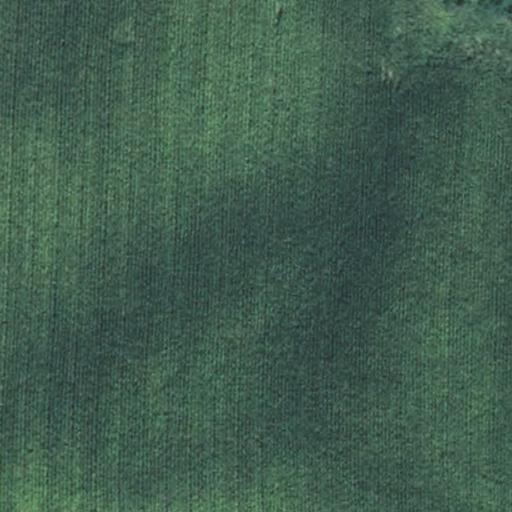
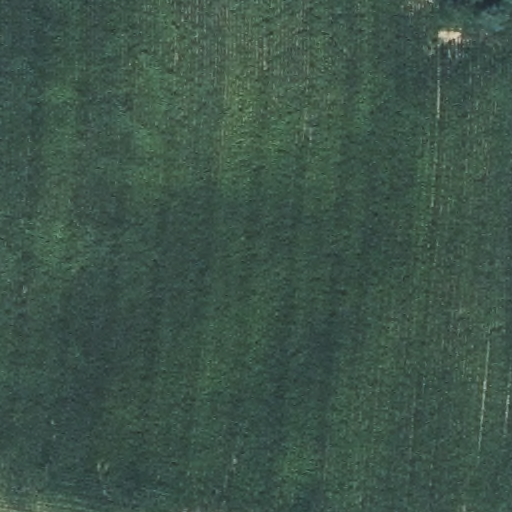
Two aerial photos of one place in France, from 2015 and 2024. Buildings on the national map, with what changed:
[]

